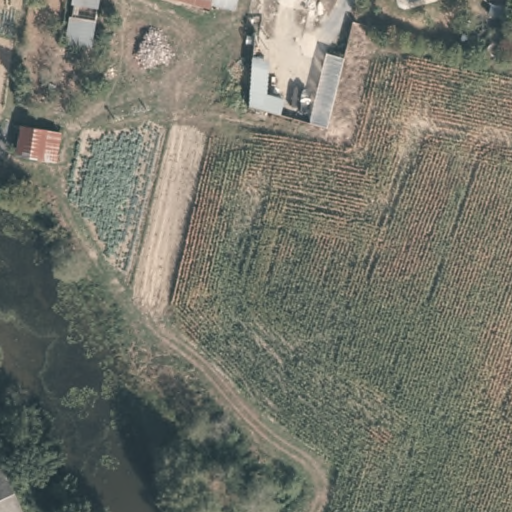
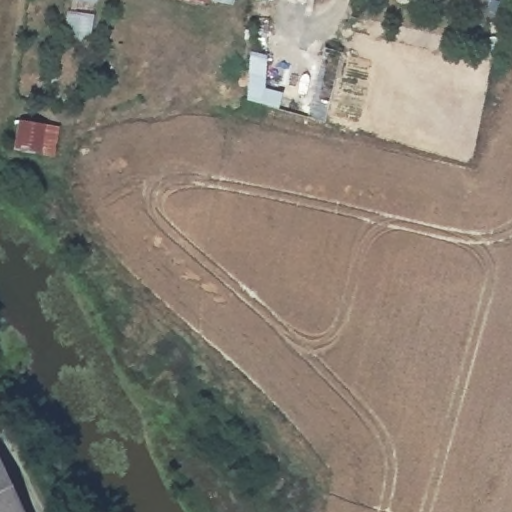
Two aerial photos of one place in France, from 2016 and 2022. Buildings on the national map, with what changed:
unchanged [(207,2),(202,0),(208,0),(207,2)]
unchanged [(231,4),(216,0),(232,0),(231,4)]
unchanged [(72,11),(98,14),(95,40),(68,36),(72,11)]
unchanged [(19,152),(23,122),(48,125),(61,127),(58,158),(44,156),(19,152)]
unchanged [(0,512),(0,462),(23,512),(0,512)]

